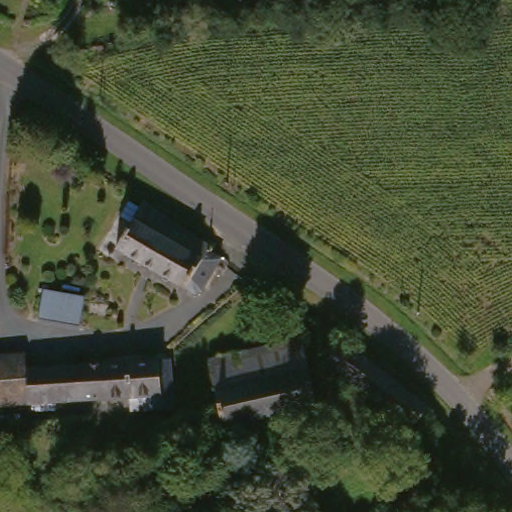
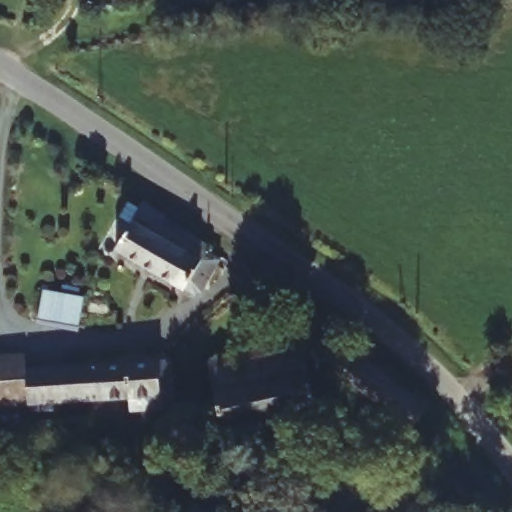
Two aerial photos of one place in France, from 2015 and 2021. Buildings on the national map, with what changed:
unchanged [(149,274),(111,251),(140,205),(176,228),(149,274)]
unchanged [(181,293),(149,274),(176,228),(208,250),(223,260),(199,299),(181,293)]
unchanged [(86,301),(82,331),(40,325),(44,295),(86,301)]
unchanged [(301,342),(318,410),(223,432),(207,365),(301,342)]
unchanged [(432,407),(429,412),(417,431),(325,363),(348,345),(432,407)]
unchanged [(23,407),(23,410),(0,411),(0,361),(21,360),(22,372),(23,407)]
unchanged [(171,404),(171,407),(156,408),(156,396),(123,398),(120,363),(154,360),(154,362),(168,361),(171,404)]
unchanged [(75,402),(73,367),(120,363),(123,398),(75,402)]
unchanged [(23,407),(22,372),(73,367),(75,402),(23,407)]

